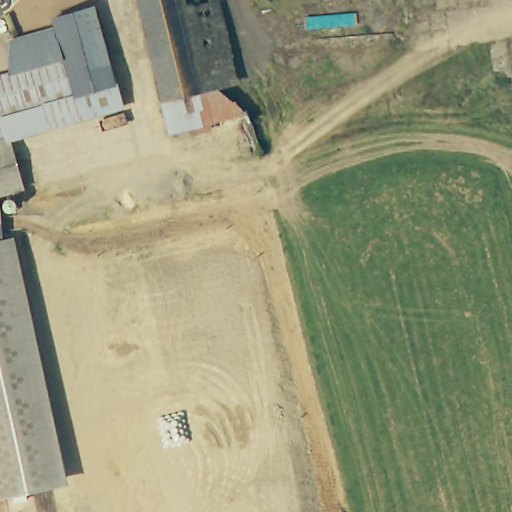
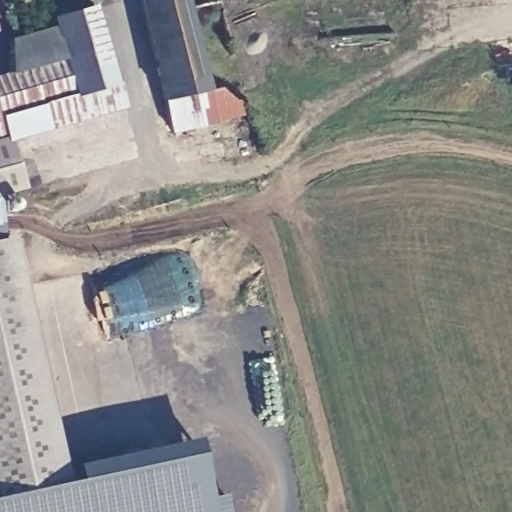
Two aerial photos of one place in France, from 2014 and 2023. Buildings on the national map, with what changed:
unchanged [(137,0),(217,0),(217,2),(200,6),(186,9),(205,90),(161,100),(137,0)]
demolished [(217,2),(236,82),(215,88),(205,90),(186,9),(200,6),(217,2)]
unchanged [(120,77),(79,89),(68,52),(24,65),(15,34),(59,21),(100,9),(120,77)]
unchanged [(13,133),(10,134),(8,132),(9,129),(0,132),(0,72),(24,65),(68,52),(79,89),(120,77),(127,99),(13,133)]
unchanged [(169,132),(161,100),(205,90),(215,88),(246,112),(169,132)]
unchanged [(0,132),(9,129),(8,132),(10,134),(13,133),(28,183),(3,191),(0,192),(0,132)]
unchanged [(4,236),(0,237),(0,192),(3,191),(4,236)]
unchanged [(56,481),(0,493),(0,237),(4,236),(27,343),(56,481)]
new [(77,477),(74,465),(199,438),(211,498),(226,494),(231,512),(0,512),(0,493),(56,481),(77,477)]

